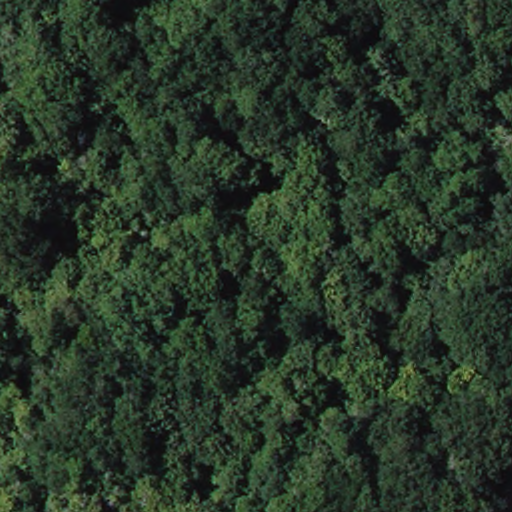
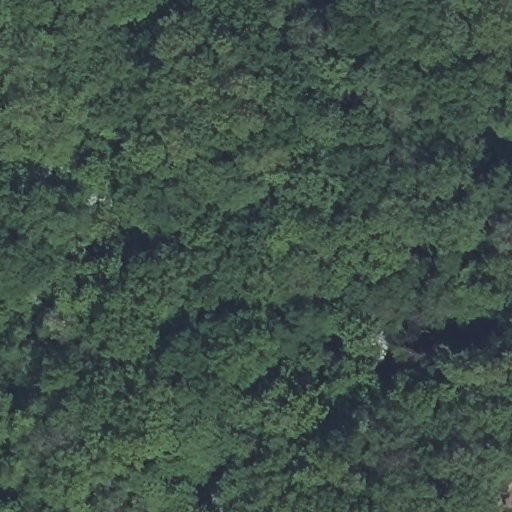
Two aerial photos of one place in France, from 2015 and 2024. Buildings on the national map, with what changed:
[]

